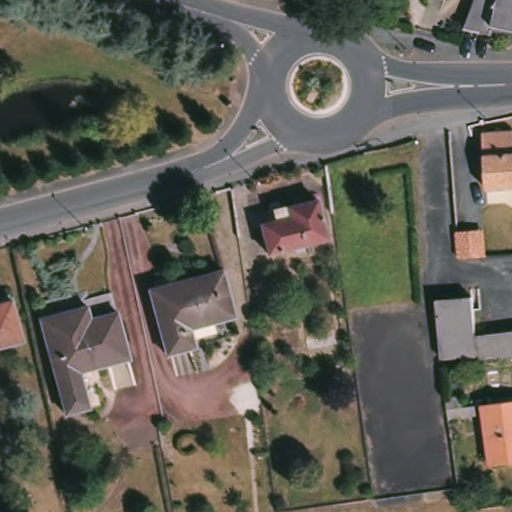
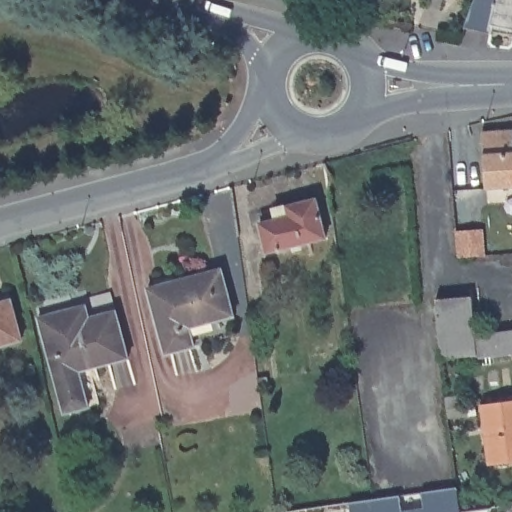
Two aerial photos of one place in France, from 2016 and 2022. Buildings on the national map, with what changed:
unchanged [(492,25),(490,35),(464,29),(475,0),(512,0),(512,29),(492,25)]
unchanged [(486,190),(482,136),(512,134),(512,189),(486,190)]
unchanged [(285,205),(316,198),(326,239),(265,254),(258,223),(287,216),(285,205)]
unchanged [(478,230),(480,257),(450,257),(448,232),(478,230)]
unchanged [(220,266),(237,332),(165,351),(148,285),(220,266)]
unchanged [(472,293),(476,334),(512,330),(512,353),(478,356),(477,350),(442,354),(436,296),(472,293)]
unchanged [(22,342),(0,348),(0,304),(12,301),(22,342)]
unchanged [(85,302),(88,314),(114,308),(126,356),(79,368),(87,404),(63,411),(39,314),(85,302)]
unchanged [(512,401),(512,462),(491,464),(483,404),(512,401)]
new [(423,508),(421,492),(456,487),(460,512),(425,512),(424,507),(423,508)]
new [(400,511),(423,508),(424,507),(425,512),(349,512),(348,502),(398,495),(400,511)]
new [(463,512),(491,507),(488,512),(463,512)]

